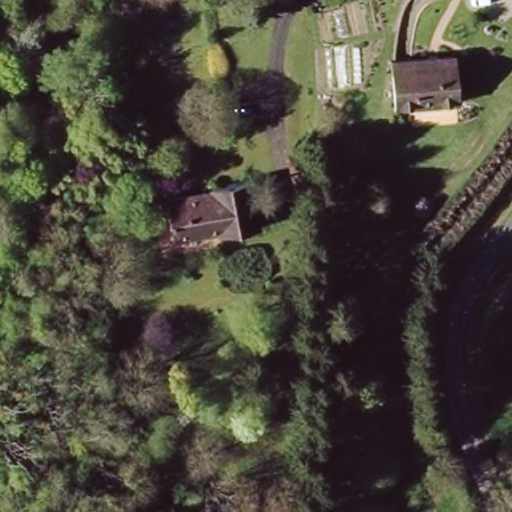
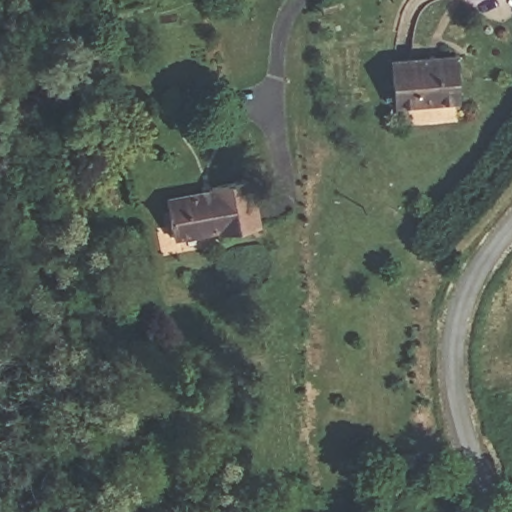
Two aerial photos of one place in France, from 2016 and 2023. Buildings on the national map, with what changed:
unchanged [(465,94),(399,103),(394,59),(460,51),(465,94)]
unchanged [(229,232),(228,227),(181,236),(174,199),(222,189),(221,184),(261,175),(271,223),(229,232)]

